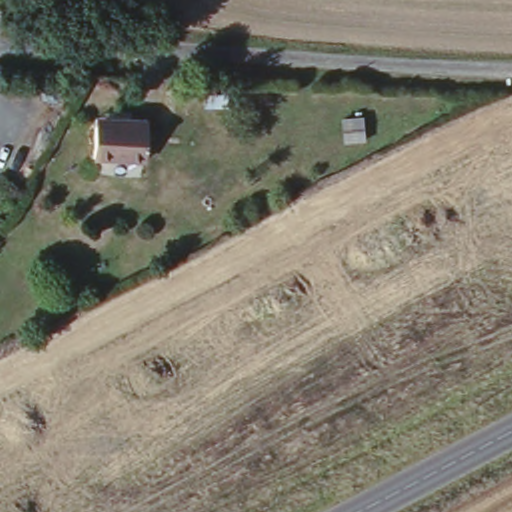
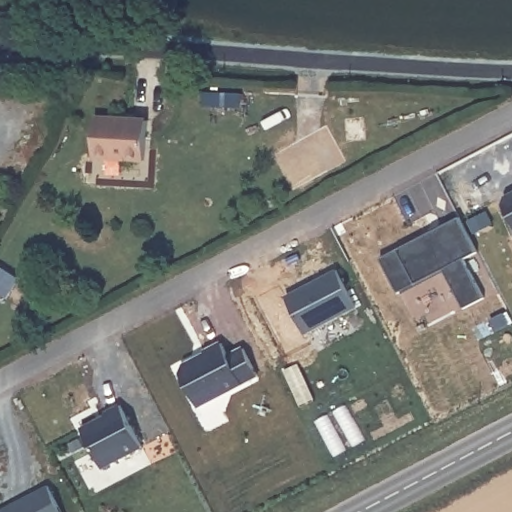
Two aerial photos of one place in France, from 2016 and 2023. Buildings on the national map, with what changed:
unchanged [(92,116),(145,117),(144,161),(90,160),(92,116)]
new [(504,199),(512,194),(512,221),(503,204),(504,199)]
new [(477,252),(463,259),(483,298),(463,308),(442,270),(397,293),(380,258),(458,217),(477,252)]
new [(283,297),(335,270),(354,308),(303,335),(283,297)]
new [(179,373),(181,367),(204,355),(203,352),(220,343),(227,357),(242,349),(256,375),(196,407),(179,373)]
new [(100,468),(80,430),(105,416),(103,414),(118,406),(140,447),(100,468)]
new [(59,512),(0,512),(0,510),(46,486),(59,512)]

